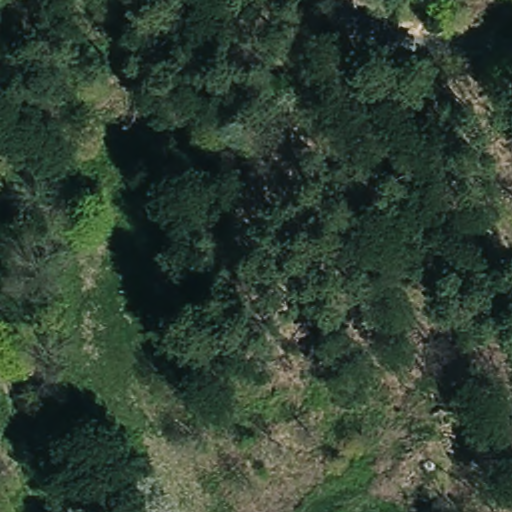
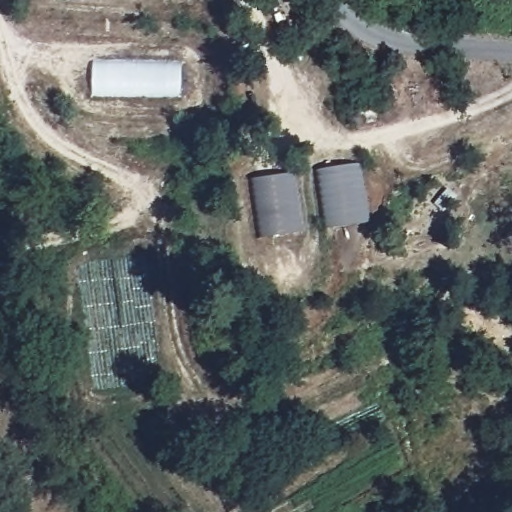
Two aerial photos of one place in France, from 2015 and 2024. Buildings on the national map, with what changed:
new [(181,95),(92,95),(93,61),(181,63),(181,95)]
new [(358,165),(368,223),(326,230),(316,172),(358,165)]
new [(292,174),(302,233),(261,240),(251,181),(292,174)]

